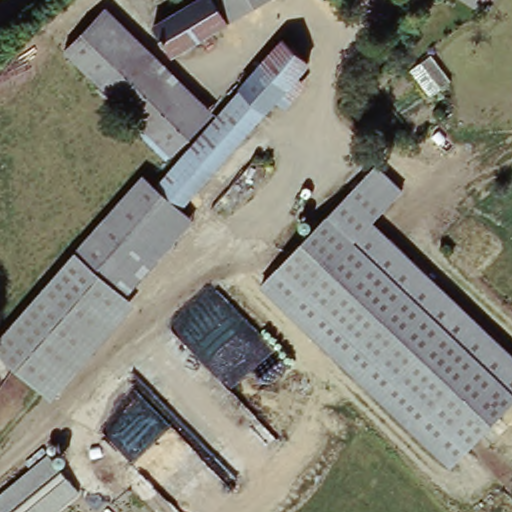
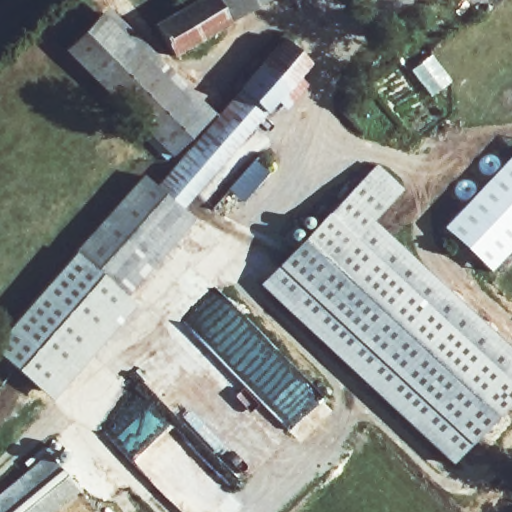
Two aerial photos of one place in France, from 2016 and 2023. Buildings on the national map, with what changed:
unchanged [(234,25),(176,59),(157,29),(206,0),(220,0),(234,25)]
unchanged [(234,25),(220,0),(277,0),(234,25)]
unchanged [(498,1),(496,0),(499,0),(498,1)]
unchanged [(113,15),(216,122),(177,158),(75,49),(113,15)]
unchanged [(242,97),(295,44),(317,67),(245,149),(219,178),(183,218),(156,195),(177,172),(192,155),(242,97)]
new [(431,53),(451,79),(432,94),(412,68),(431,53)]
new [(442,229),(512,154),(512,248),(488,273),(442,229)]
unchanged [(371,171),(398,197),(367,228),(512,363),(512,402),(447,469),(256,291),(371,171)]
unchanged [(142,183),(156,195),(183,218),(196,229),(130,307),(75,258),(142,183)]
unchanged [(51,390),(0,340),(0,337),(75,258),(130,307),(51,390)]
unchanged [(32,466),(50,453),(56,460),(85,496),(65,512),(0,512),(0,504),(37,474),(32,466)]

